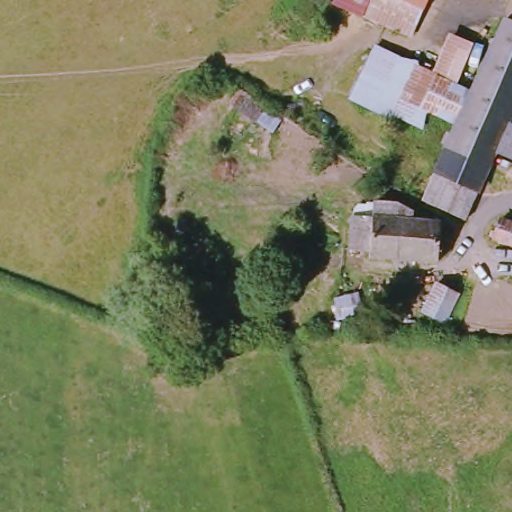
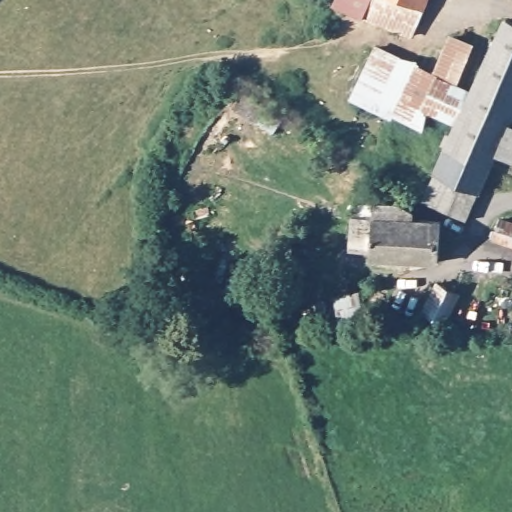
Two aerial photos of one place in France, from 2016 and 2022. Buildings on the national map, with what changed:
unchanged [(358,20),(335,9),(339,0),(425,0),(420,11),(408,40),(358,20)]
unchanged [(451,125),(467,91),(500,19),(512,25),(512,106),(503,125),(512,129),(512,161),(491,152),(473,191),(430,172),(451,125)]
unchanged [(451,125),(421,110),(417,127),(371,106),(393,59),(430,75),(446,37),(466,45),(450,83),(467,91),(451,125)]
unchanged [(393,59),(371,106),(348,95),(370,48),(393,59)]
unchanged [(473,191),(460,221),(418,201),(430,172),(473,191)]
unchanged [(365,251),(345,250),(347,217),(350,217),(350,213),(352,210),(355,207),(357,206),(359,205),(360,206),(363,206),(365,208),(367,210),(368,215),(368,218),(370,203),(391,205),(396,206),(408,213),(407,219),(436,221),(433,262),(365,258),(365,251)]
unchanged [(512,246),(490,239),(496,220),(512,225),(512,246)]
unchanged [(460,295),(446,323),(423,312),(437,283),(460,295)]

